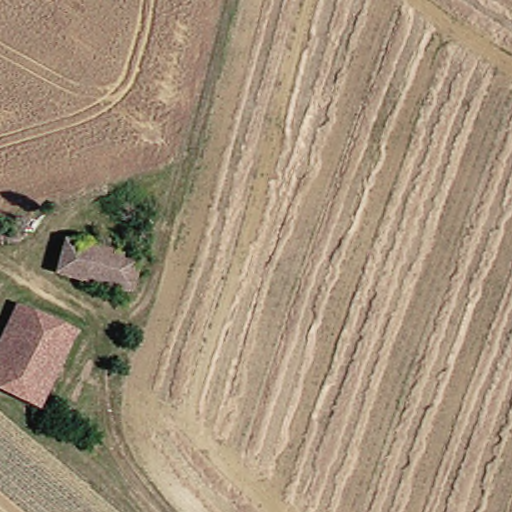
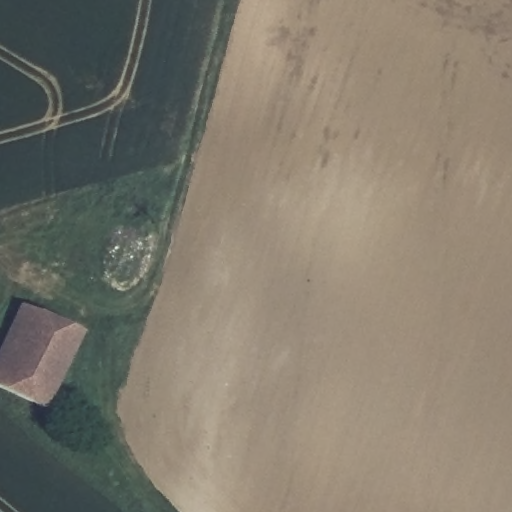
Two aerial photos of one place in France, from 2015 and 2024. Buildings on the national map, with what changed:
unchanged [(50,268),(60,231),(160,257),(151,294),(50,268)]
unchanged [(51,405),(0,376),(0,354),(26,304),(81,332),(51,405)]

